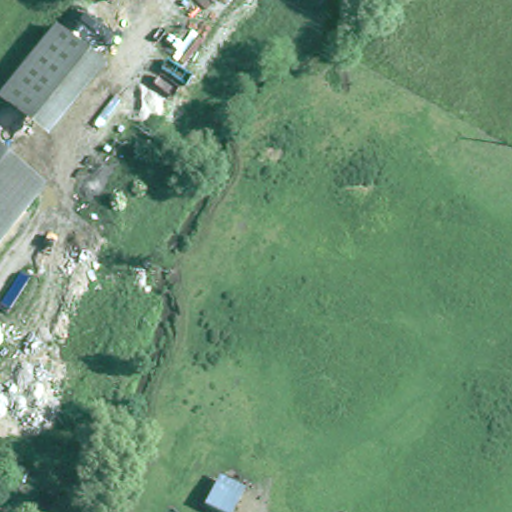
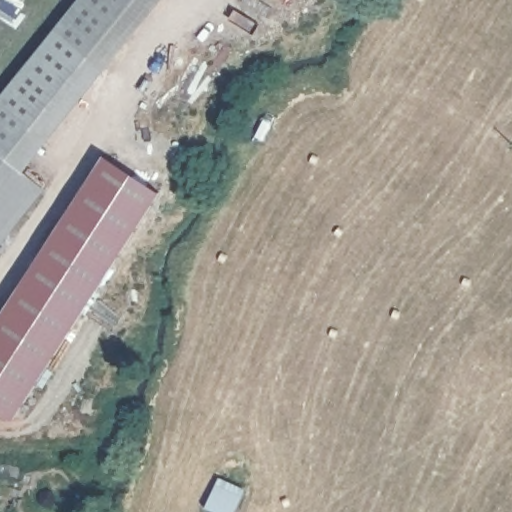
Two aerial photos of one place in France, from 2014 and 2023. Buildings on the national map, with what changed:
new [(50,40),(82,0),(165,0),(101,80),(50,40)]
unchanged [(2,100),(30,64),(50,40),(101,80),(53,141),(2,100)]
new [(0,154),(0,103),(2,100),(53,141),(26,174),(0,154)]
unchanged [(0,154),(39,184),(18,211),(0,234),(0,154)]
new [(14,419),(0,411),(0,316),(103,155),(162,191),(14,419)]

